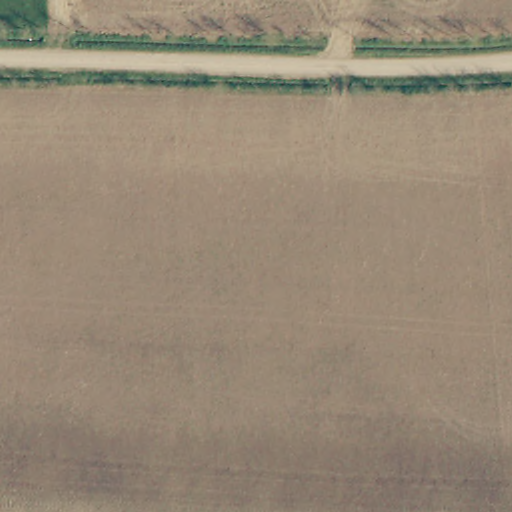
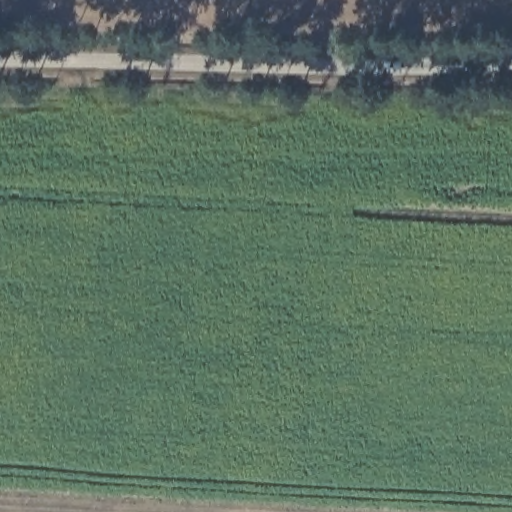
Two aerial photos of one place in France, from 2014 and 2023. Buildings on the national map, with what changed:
[]

